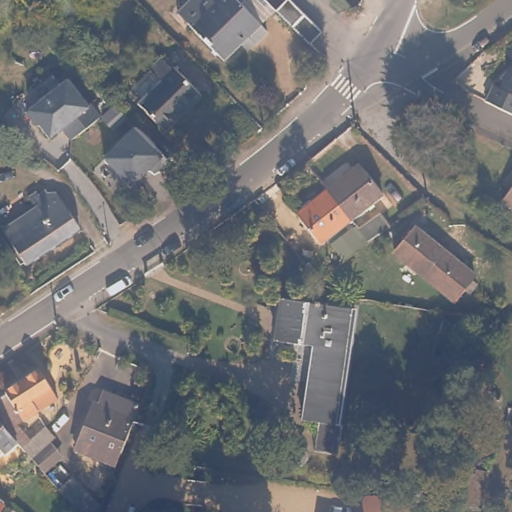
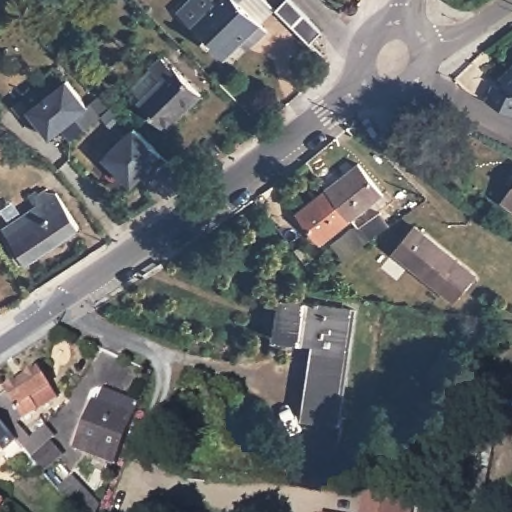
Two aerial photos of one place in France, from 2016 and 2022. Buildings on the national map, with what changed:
unchanged [(220,58),(186,25),(209,1),(207,0),(263,0),(271,9),(257,23),(263,29),(251,41),(245,47),(237,41),(220,58)]
unchanged [(169,68),(170,66),(199,95),(164,130),(135,102),(158,79),(147,70),(159,58),(169,68)]
unchanged [(480,102),(488,87),(492,89),(497,83),(494,80),(508,67),(506,65),(512,60),(512,104),(506,116),(480,102)]
unchanged [(62,129),(50,139),(27,113),(67,79),(88,107),(90,104),(100,116),(70,140),(62,129)]
unchanged [(102,157),(133,129),(161,156),(169,163),(156,176),(149,170),(133,188),(102,157)]
unchanged [(360,166),(382,197),(351,221),(329,188),(360,166)]
unchanged [(351,221),(320,244),(298,211),(329,188),(351,221)]
unchanged [(512,189),(512,208),(504,203),(512,189)]
unchanged [(84,224),(27,267),(2,236),(34,211),(26,202),(35,195),(37,198),(46,192),(50,197),(58,192),(84,224)]
unchanged [(386,227),(366,242),(357,229),(377,215),(386,227)]
unchanged [(475,280),(453,305),(395,254),(416,230),(475,280)]
unchanged [(351,309),(332,422),(340,423),(335,452),(312,448),(317,420),(303,417),(316,344),(276,338),(283,298),(351,309)]
unchanged [(59,398),(11,427),(0,407),(0,395),(10,389),(9,386),(40,367),(59,398)]
unchanged [(478,390),(470,451),(452,450),(460,387),(478,390)]
unchanged [(134,410),(108,477),(69,462),(87,415),(96,418),(105,398),(134,410)]
unchanged [(19,442),(6,452),(1,447),(0,447),(0,420),(19,442)]
unchanged [(54,437),(32,457),(23,446),(41,431),(45,426),(54,437)]
unchanged [(468,467),(467,477),(463,506),(442,502),(447,464),(468,467)]
unchanged [(97,506),(94,512),(80,512),(60,490),(75,478),(97,506)]
unchanged [(367,488),(401,493),(406,495),(403,512),(364,512),(367,488)]

